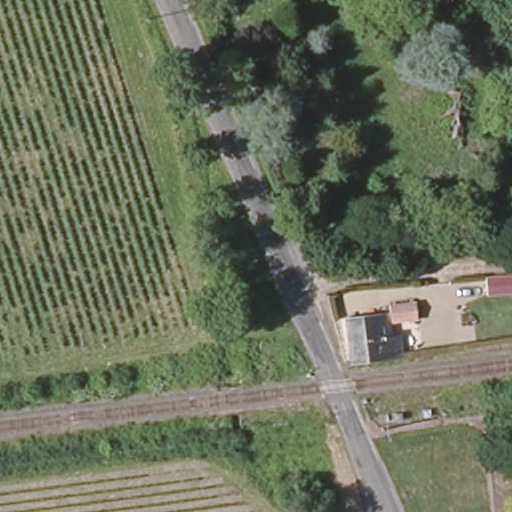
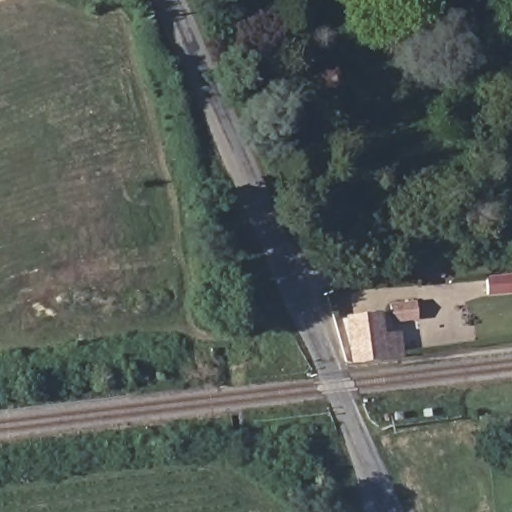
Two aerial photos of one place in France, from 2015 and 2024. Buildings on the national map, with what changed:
unchanged [(417,322),(391,324),(389,307),(415,305),(417,322)]
unchanged [(345,320),(375,317),(377,336),(397,335),(398,360),(382,361),(354,365),(349,365),(345,320)]

